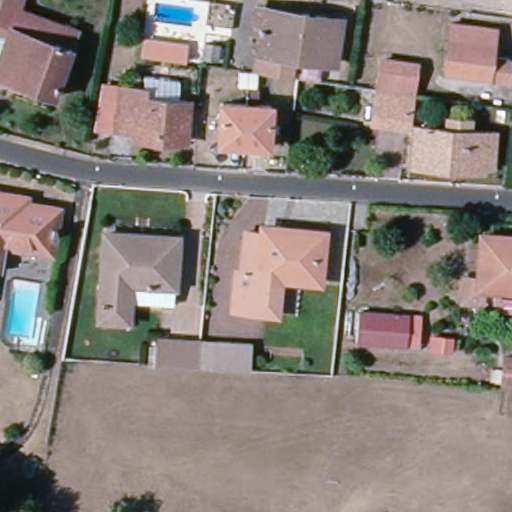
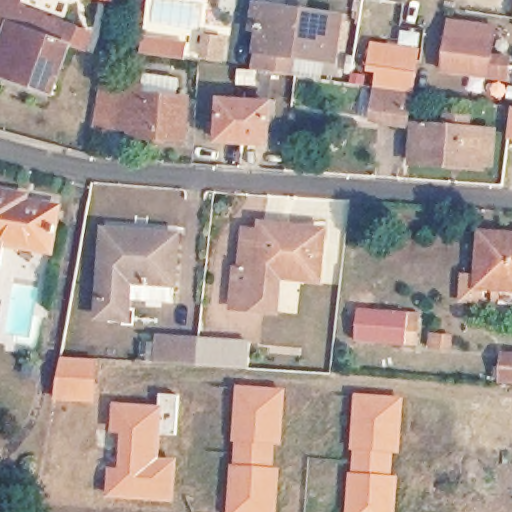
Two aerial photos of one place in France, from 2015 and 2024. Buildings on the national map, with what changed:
unchanged [(72,34),(48,99),(0,80),(0,50),(5,39),(0,37),(0,3),(1,0),(20,0),(15,12),(72,34)]
unchanged [(512,0),(512,29),(507,28),(512,0)]
unchanged [(276,79),(252,76),(258,35),(249,33),(253,10),(338,23),(331,66),(290,60),(287,80),(276,79)]
unchanged [(488,39),(485,66),(503,69),(501,91),(436,82),(443,32),(488,39)]
unchanged [(372,93),(376,63),(410,69),(405,98),(372,93)]
unchanged [(137,85),(172,89),(170,109),(180,110),(177,151),(124,145),(124,139),(107,137),(110,96),(135,97),(137,85)]
unchanged [(405,98),(400,130),(367,125),(372,93),(405,98)]
unchanged [(265,144),(229,142),(222,141),(222,135),(223,122),(225,101),(275,105),(273,126),(272,138),(272,145),(265,144)]
unchanged [(487,136),(485,169),(477,167),(476,173),(406,168),(408,130),(487,136)]
unchanged [(17,202),(17,206),(50,212),(42,255),(0,248),(0,198),(17,202)]
unchanged [(226,287),(232,287),(235,234),(247,234),(248,229),(321,234),(315,295),(274,292),(272,325),(221,322),(226,287)]
unchanged [(512,295),(470,292),(473,237),(512,240),(512,295)]
unchanged [(120,307),(119,327),(92,326),(97,240),(169,246),(165,292),(163,312),(120,307)]
unchanged [(411,316),(408,343),(361,340),(363,312),(411,316)]
unchanged [(148,367),(150,342),(191,345),(189,370),(148,367)]
unchanged [(189,370),(191,345),(240,348),(239,373),(189,370)]
new [(99,361),(97,404),(55,402),(62,357),(99,361)]
unchanged [(512,389),(490,387),(492,359),(512,361),(512,389)]
new [(287,390),(282,446),(277,445),(276,467),(282,468),(279,512),(228,512),(232,465),(235,464),(235,443),(232,442),(237,386),(287,390)]
new [(159,406),(160,393),(179,395),(176,435),(162,433),(161,457),(178,460),(176,504),(107,498),(109,468),(120,469),(122,435),(111,434),(114,403),(159,406)]
new [(405,398),(401,454),(395,454),(394,476),(399,476),(397,512),(347,512),(348,474),(352,474),(354,451),(351,451),(356,393),(405,398)]

